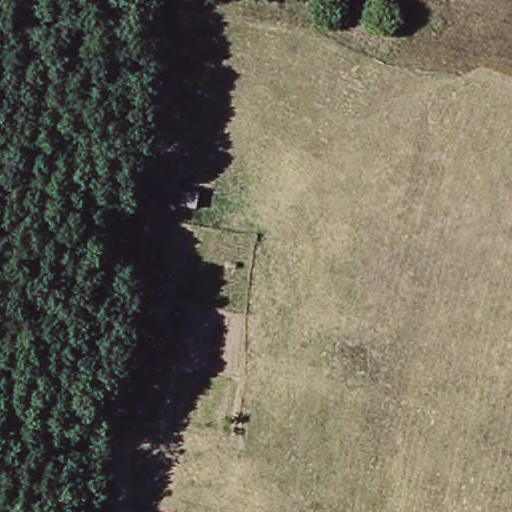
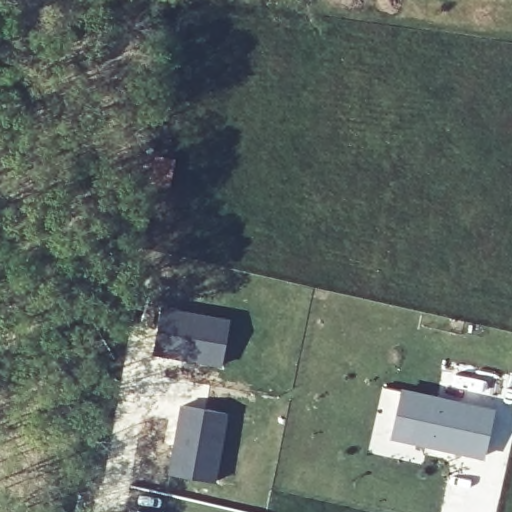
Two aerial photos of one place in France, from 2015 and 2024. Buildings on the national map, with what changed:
new [(159,304),(231,317),(222,368),(151,355),(159,304)]
new [(399,386),(497,407),(484,458),(388,438),(399,386)]
new [(180,403),(228,412),(215,481),(166,473),(180,403)]
new [(140,512),(131,512),(131,510),(140,512)]

